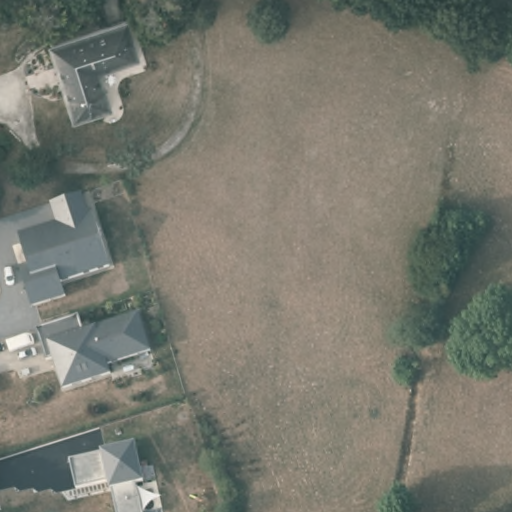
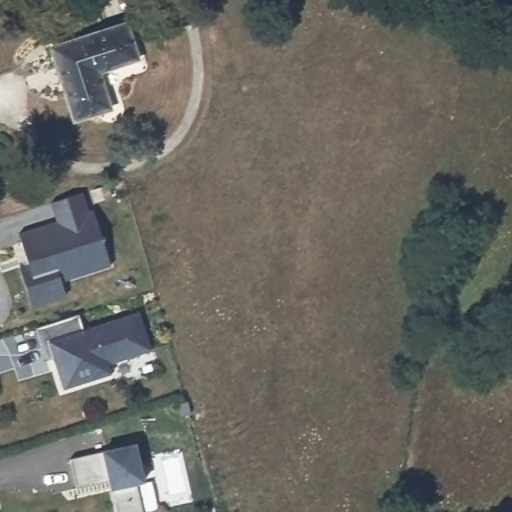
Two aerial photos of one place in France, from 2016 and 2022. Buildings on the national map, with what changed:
unchanged [(130,18),(141,55),(102,66),(112,104),(75,113),(54,41),(130,18)]
unchanged [(17,221),(51,211),(48,202),(84,190),(108,263),(63,279),(67,294),(31,305),(17,221)]
unchanged [(138,298),(153,346),(104,361),(105,372),(60,390),(39,322),(138,298)]
unchanged [(136,442),(143,480),(136,481),(143,512),(116,512),(109,479),(76,486),(70,456),(136,442)]

